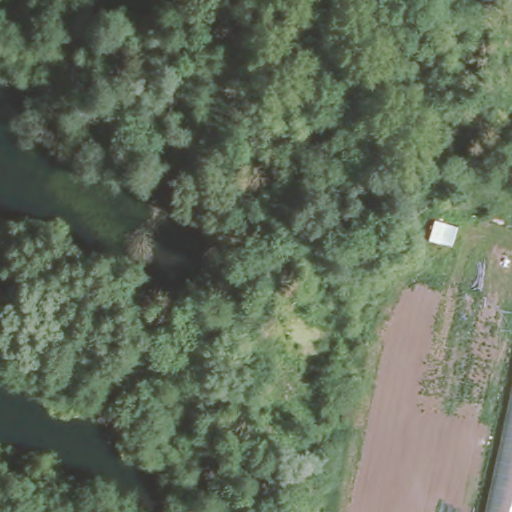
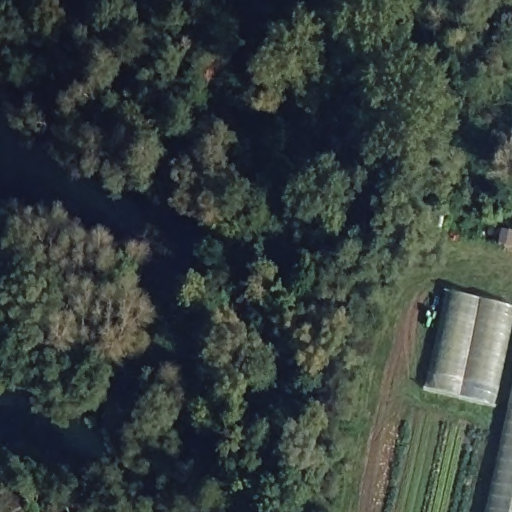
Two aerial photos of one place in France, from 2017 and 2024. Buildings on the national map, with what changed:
unchanged [(201,56),(215,60),(201,96),(189,89),(201,56)]
new [(493,407),(425,389),(447,291),(512,307),(512,319),(493,407)]
new [(486,512),(512,398),(512,512),(486,512)]

